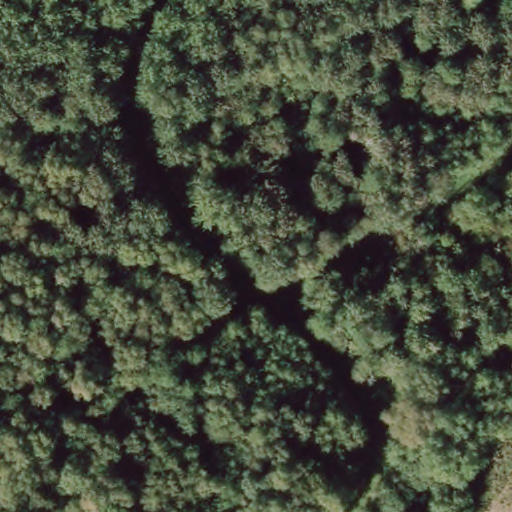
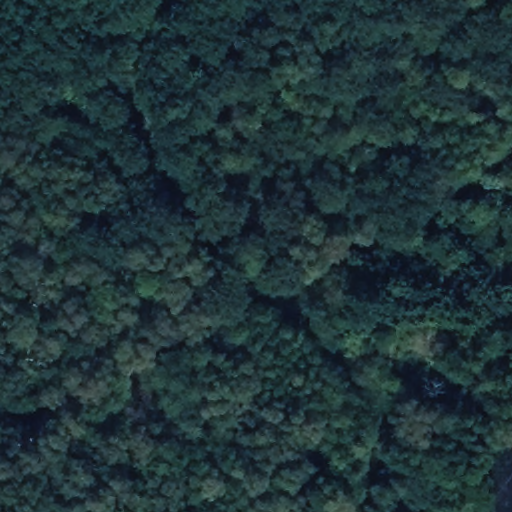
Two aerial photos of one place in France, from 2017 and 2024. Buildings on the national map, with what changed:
unchanged [(512,372),(485,380),(477,353),(505,343),(512,364),(512,372)]

